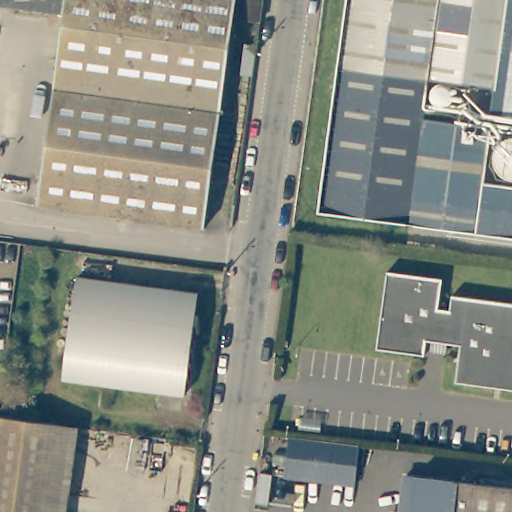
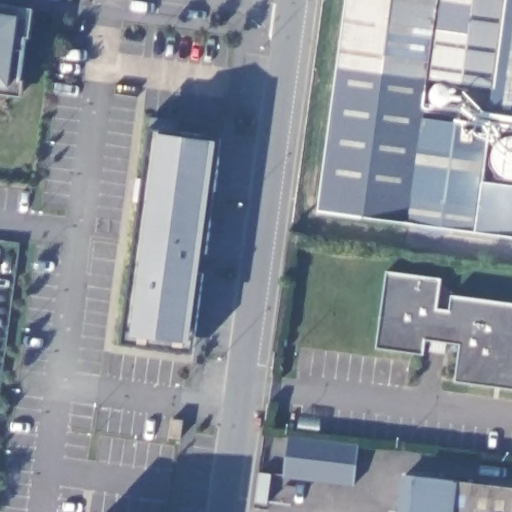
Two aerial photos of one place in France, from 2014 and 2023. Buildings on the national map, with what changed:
demolished [(61,15),(0,6),(0,0),(235,0),(205,225),(36,205),(61,15)]
unchanged [(320,206),(349,0),(512,0),(512,233),(320,206)]
new [(0,97),(0,5),(33,10),(23,100),(0,97)]
demolished [(5,143),(0,142),(0,70),(14,72),(5,143)]
new [(120,346),(154,123),(181,127),(178,133),(222,139),(192,354),(120,346)]
unchanged [(452,376),(457,338),(423,333),(420,353),(375,347),(386,271),(440,278),(436,308),(448,310),(450,293),(512,302),(512,384),(452,376)]
demolished [(196,288),(183,387),(63,371),(76,272),(196,288)]
demolished [(59,512),(0,512),(0,486),(9,417),(70,423),(59,512)]
unchanged [(361,440),(356,478),(286,470),(290,431),(361,440)]
unchanged [(414,478),(512,490),(512,512),(409,512),(414,478)]

